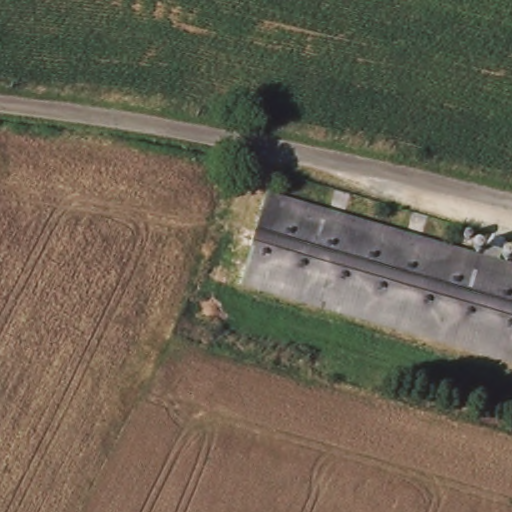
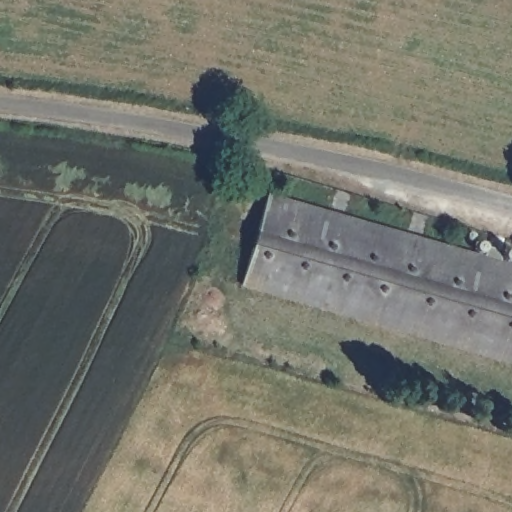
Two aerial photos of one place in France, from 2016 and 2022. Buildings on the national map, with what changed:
unchanged [(267,197),(512,268),(512,361),(242,285),(267,197)]

